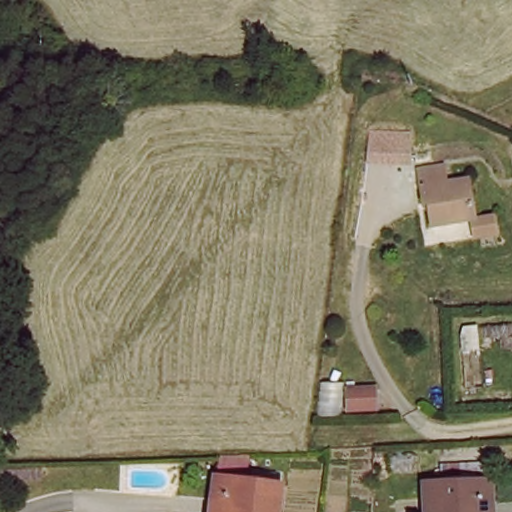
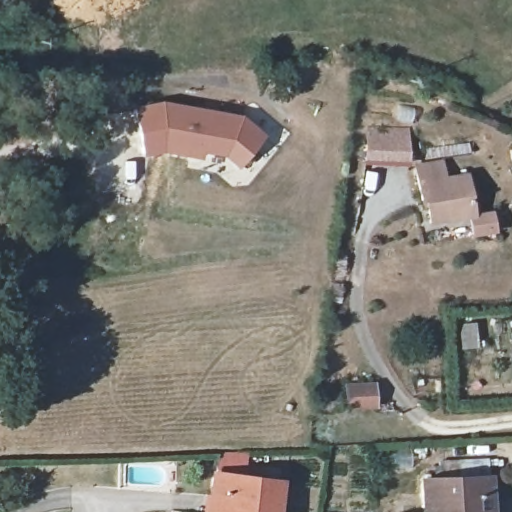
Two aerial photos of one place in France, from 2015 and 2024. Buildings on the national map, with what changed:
new [(162,102),(243,116),(266,136),(238,170),(225,158),(204,154),(203,160),(163,154),(142,158),(133,108),(162,102)]
new [(368,128),(410,130),(410,162),(366,163),(368,128)]
unchanged [(475,217),(472,218),(432,224),(428,200),(424,201),(418,168),(445,164),(447,180),(469,177),(475,217)]
unchanged [(374,411),(347,412),(346,392),(374,391),(374,411)]
unchanged [(281,482),(278,512),(210,512),(214,474),(216,475),(219,455),(247,454),(244,477),(281,482)]
unchanged [(478,473),(480,473),(481,512),(414,512),(413,476),(430,475),(430,457),(477,455),(478,473)]

